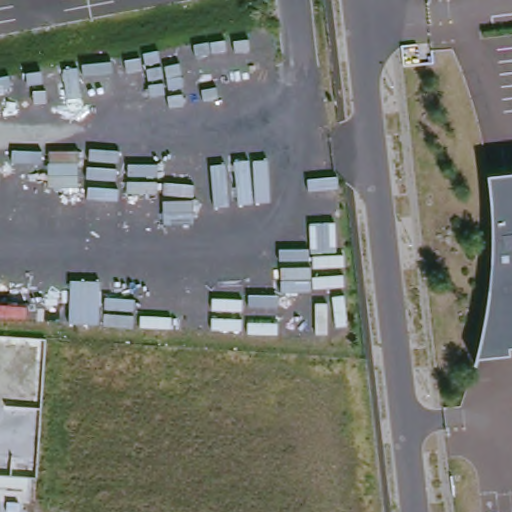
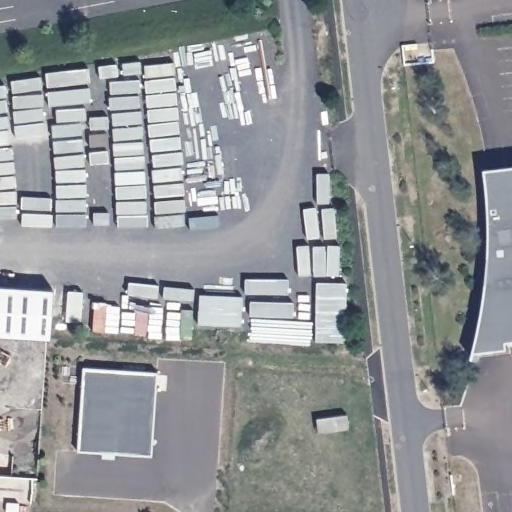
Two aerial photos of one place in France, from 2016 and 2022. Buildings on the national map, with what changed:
unchanged [(478,361),(484,337),(488,312),(490,293),(493,268),(493,247),(493,226),(493,206),(490,177),(512,174),(512,357),(478,361)]
new [(0,335),(0,285),(52,288),(49,338),(45,338),(0,335)]
new [(150,455),(75,450),(81,366),(156,371),(150,455)]

